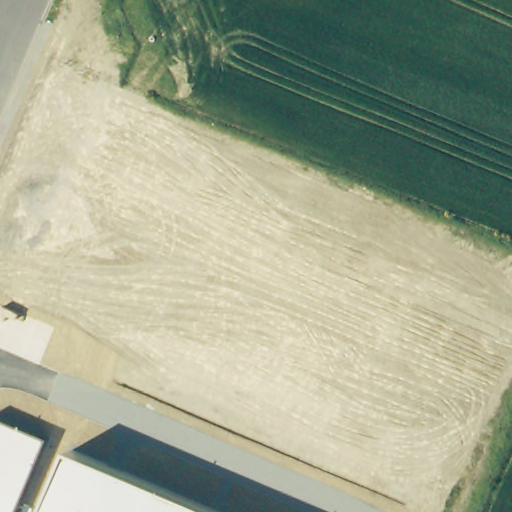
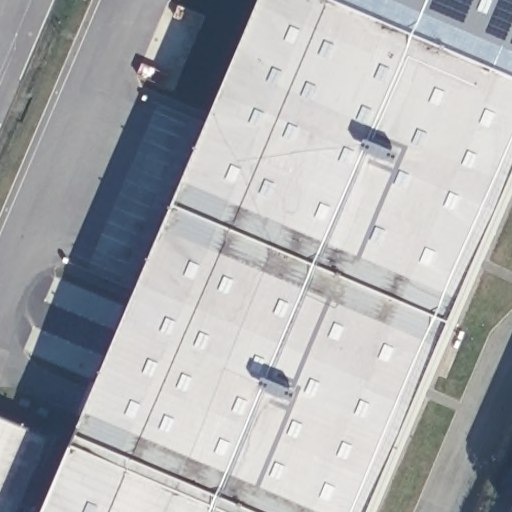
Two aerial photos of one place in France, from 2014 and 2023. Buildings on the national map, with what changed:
new [(219,512),(74,451),(267,0),(330,0),(512,79),(512,190),(373,512),(219,512)]
unchanged [(18,512),(0,512),(0,420),(49,440),(18,512)]
unchanged [(47,512),(74,451),(219,512),(47,512)]

